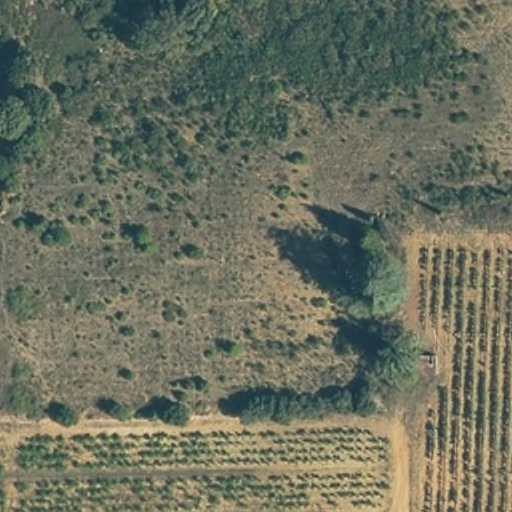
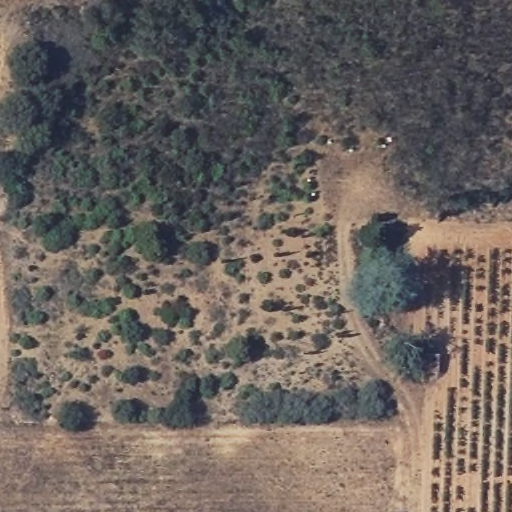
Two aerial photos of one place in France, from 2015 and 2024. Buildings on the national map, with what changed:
unchanged [(417,354),(436,354),(436,375),(416,375),(417,354)]

